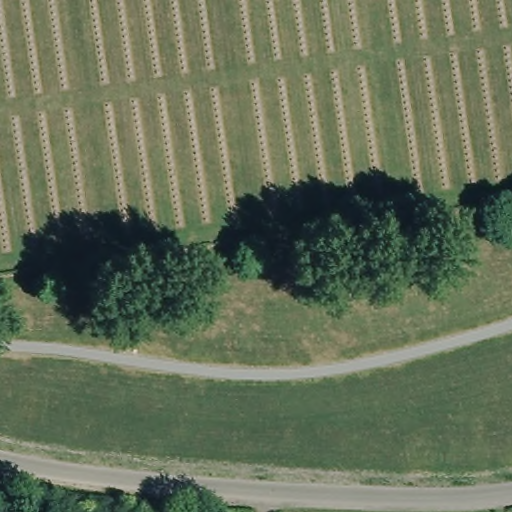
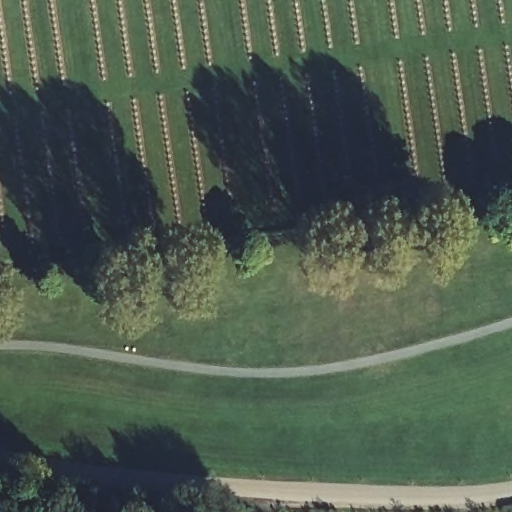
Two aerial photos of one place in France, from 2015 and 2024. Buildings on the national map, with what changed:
[]

